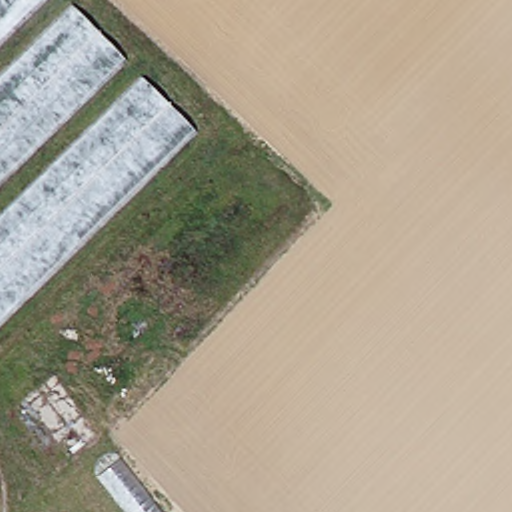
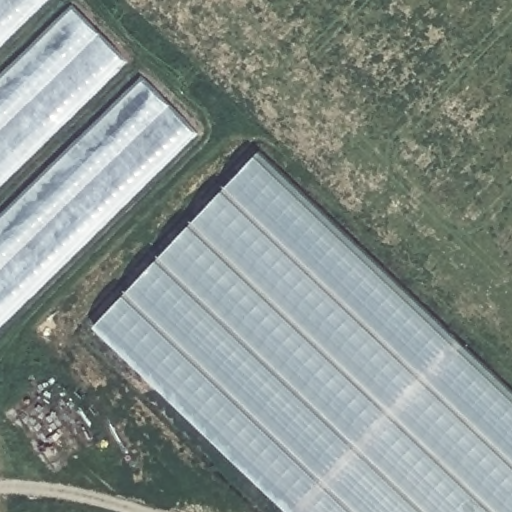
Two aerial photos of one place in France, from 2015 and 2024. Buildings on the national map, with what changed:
unchanged [(0,319),(0,0),(62,0),(190,132),(0,319)]
new [(294,512),(95,324),(260,150),(512,388),(512,512),(294,512)]

